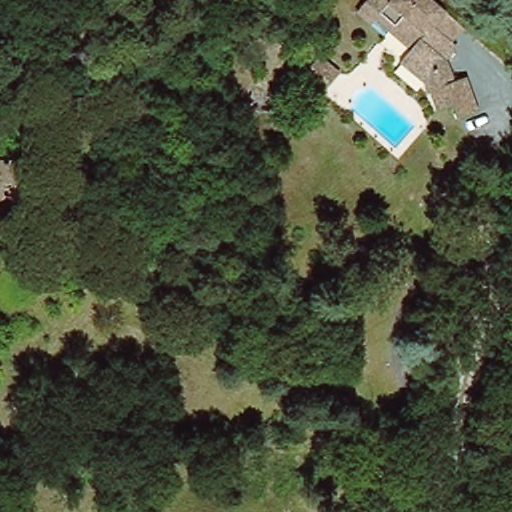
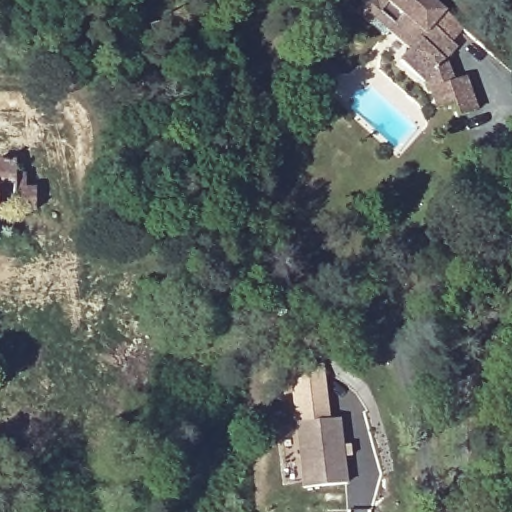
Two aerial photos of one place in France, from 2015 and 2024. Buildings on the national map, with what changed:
unchanged [(450,88),(467,84),(477,116),(459,122),(454,108),(436,113),(431,94),(399,69),(409,55),(361,14),(374,0),(379,0),(389,10),(398,0),(425,0),(462,31),(453,43),(445,38),(433,53),(441,62),(450,88)]
unchanged [(308,76),(321,59),(338,71),(323,88),(308,76)]
unchanged [(15,168),(14,215),(0,215),(0,167),(15,168)]
new [(348,484),(306,489),(297,425),(294,402),(290,369),(322,364),(326,398),(329,421),(339,419),(348,484)]

